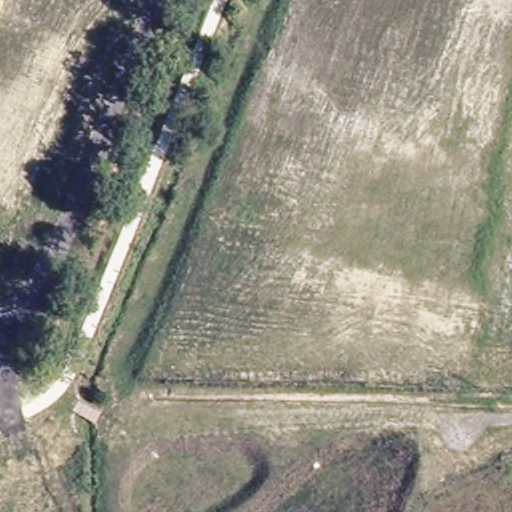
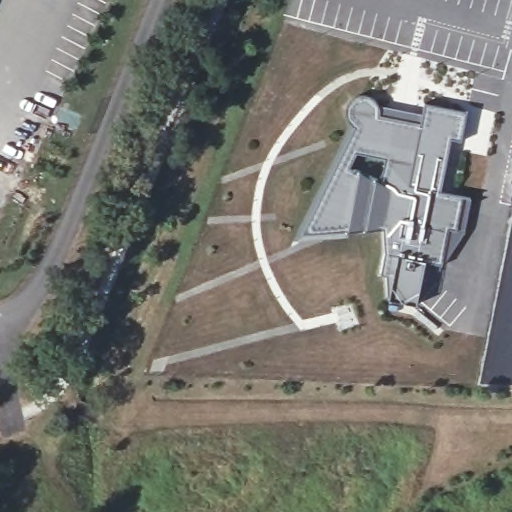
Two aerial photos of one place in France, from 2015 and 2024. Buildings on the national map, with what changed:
new [(368,97),(377,105),(423,113),(426,106),(463,114),(458,140),(450,137),(438,195),(461,200),(455,229),(447,226),(439,263),(425,259),(416,306),(388,300),(394,273),(381,272),(387,255),(384,227),(300,234),(357,127),(347,116),(347,104),(354,98),(368,97)]
demolished [(6,512),(0,512),(0,507),(6,512)]

